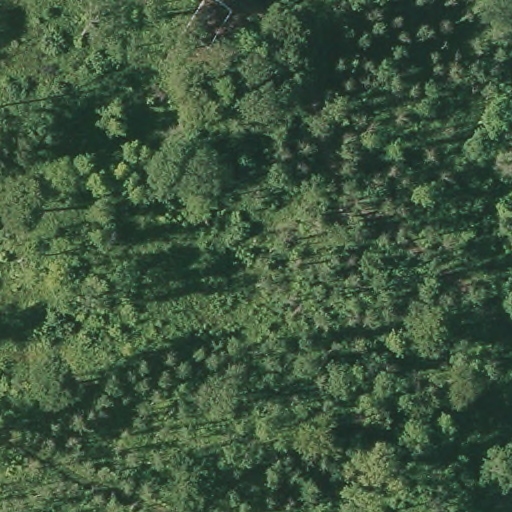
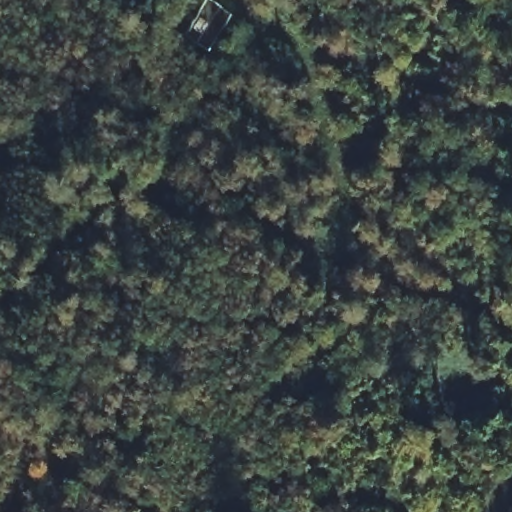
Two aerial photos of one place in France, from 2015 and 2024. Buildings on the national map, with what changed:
[]

